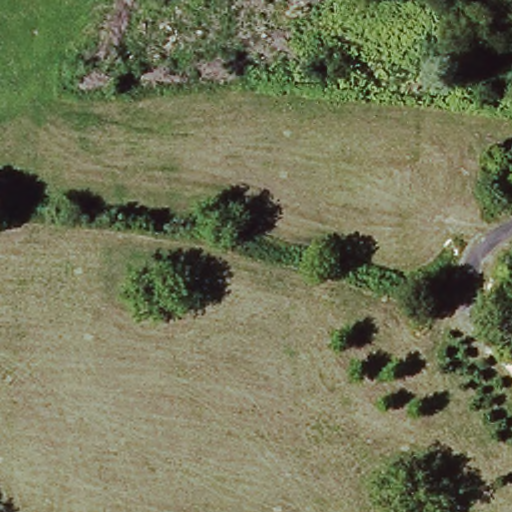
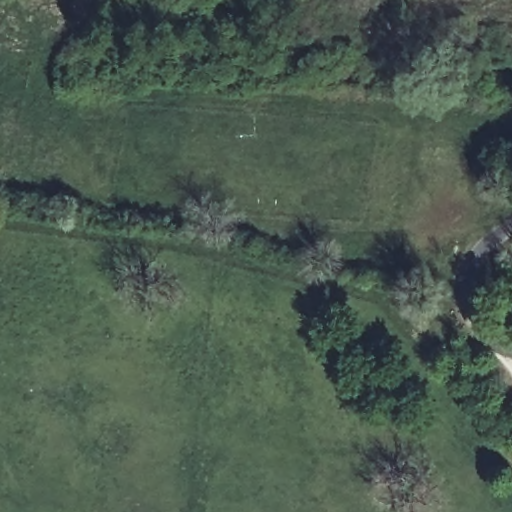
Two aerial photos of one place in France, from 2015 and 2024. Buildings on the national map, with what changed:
[]

